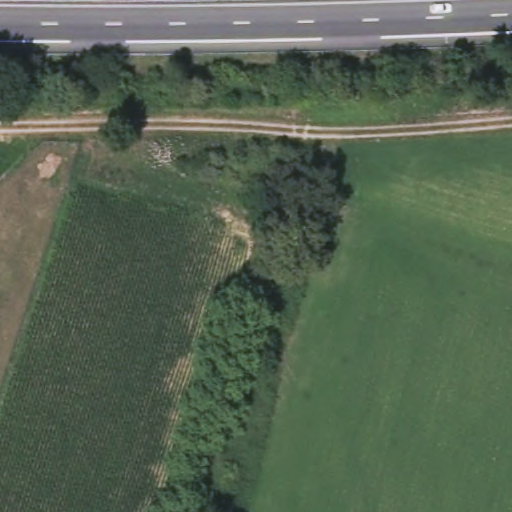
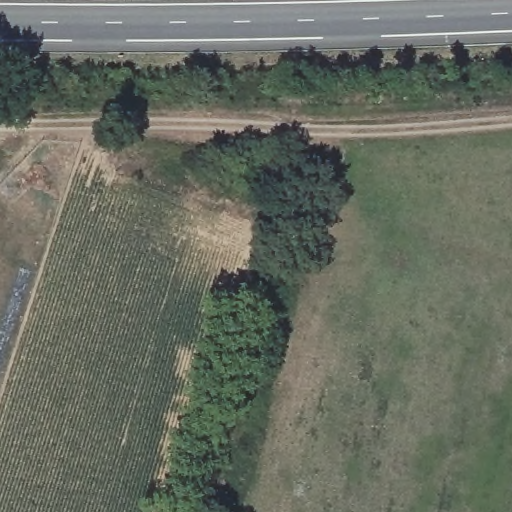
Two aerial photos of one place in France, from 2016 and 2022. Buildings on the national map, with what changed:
[]

